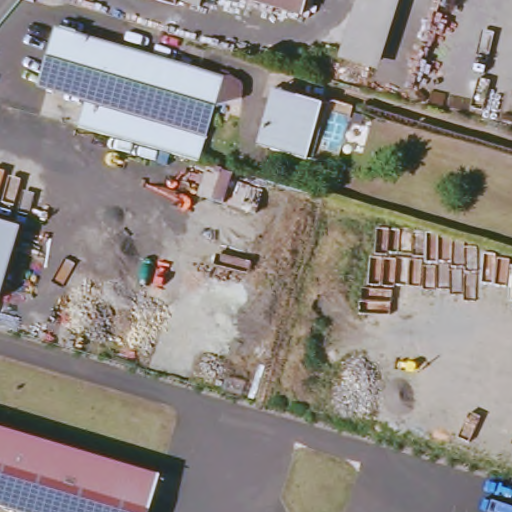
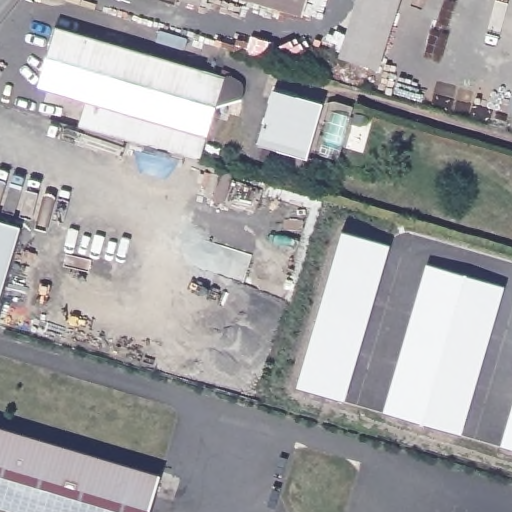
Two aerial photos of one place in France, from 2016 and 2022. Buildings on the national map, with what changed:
unchanged [(172,6),(154,0),(175,0),(172,6)]
unchanged [(301,18),(245,0),(307,0),(301,18)]
unchanged [(342,59),(359,0),(401,0),(379,71),(342,59)]
unchanged [(76,129),(87,95),(40,81),(53,26),(248,85),(242,100),(217,105),(199,157),(76,129)]
unchanged [(291,101),(293,94),(322,102),(306,156),(257,141),(271,95),(291,101)]
new [(0,298),(0,221),(21,227),(0,298)]
new [(343,403),(296,390),(340,231),(391,246),(343,403)]
new [(461,440),(380,414),(425,265),(503,290),(461,440)]
new [(503,448),(512,419),(512,451),(503,448)]
unchanged [(152,512),(17,512),(0,507),(0,431),(161,481),(152,512)]

